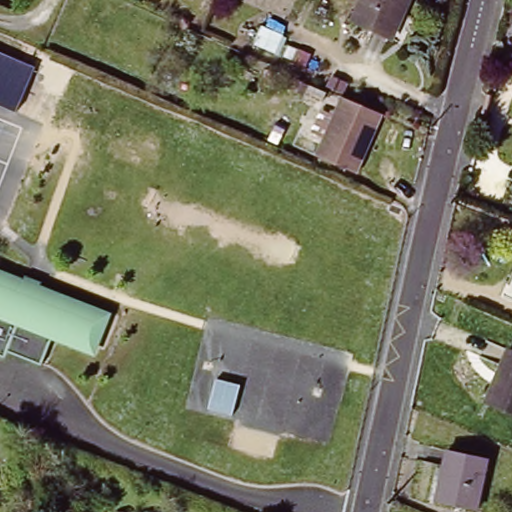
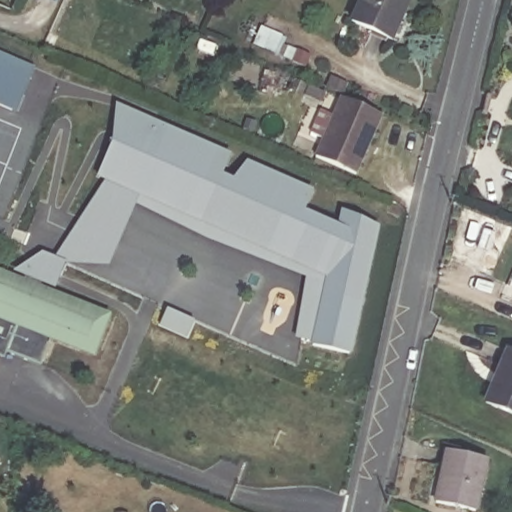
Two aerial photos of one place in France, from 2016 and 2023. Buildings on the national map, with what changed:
unchanged [(400,11),(389,36),(351,19),(359,0),(407,0),(402,11),(400,11)]
unchanged [(295,46),(310,53),(303,66),(285,59),(250,44),(260,23),(271,28),(267,37),(285,45),(285,44),(290,46),(294,48),(295,46)]
unchanged [(17,113),(0,105),(0,54),(36,70),(17,113)]
unchanged [(306,84),(302,93),(288,86),(292,78),(306,84)]
unchanged [(367,106),(380,111),(359,160),(353,173),(313,155),(318,143),(340,94),(367,106)]
new [(350,355),(294,338),(305,278),(209,242),(137,206),(110,267),(66,265),(55,294),(37,287),(20,281),(7,276),(42,252),(55,257),(105,181),(97,178),(112,143),(116,104),(232,155),(224,175),(235,179),(247,160),(314,190),(305,210),(337,223),(340,209),(379,226),(350,355)]
unchanged [(37,287),(105,314),(92,350),(52,335),(40,365),(0,349),(0,273),(20,281),(37,287)]
new [(168,306),(198,319),(190,337),(161,324),(168,306)]
unchanged [(512,351),(512,412),(487,401),(507,350),(512,351)]
unchanged [(492,458),(480,510),(442,501),(452,449),(492,458)]

